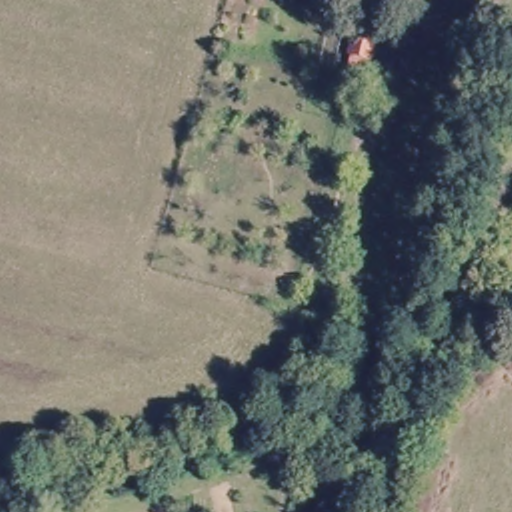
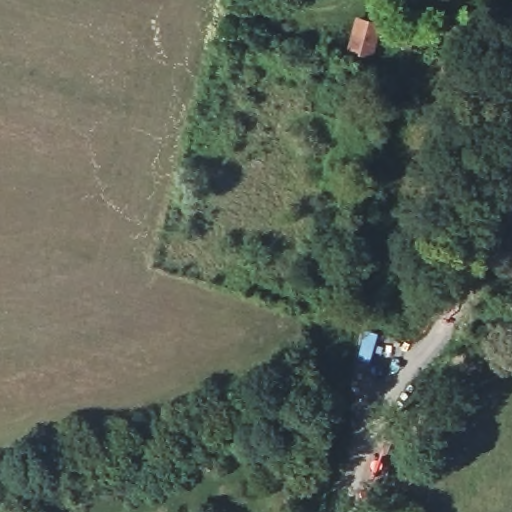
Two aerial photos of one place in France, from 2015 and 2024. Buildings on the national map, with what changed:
unchanged [(374,49),(354,44),(363,13),(384,19),(374,49)]

